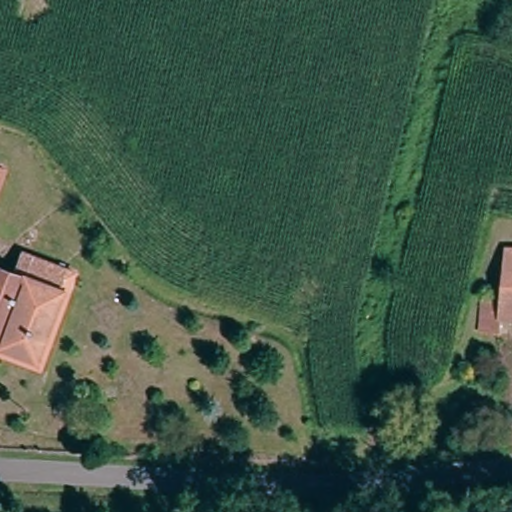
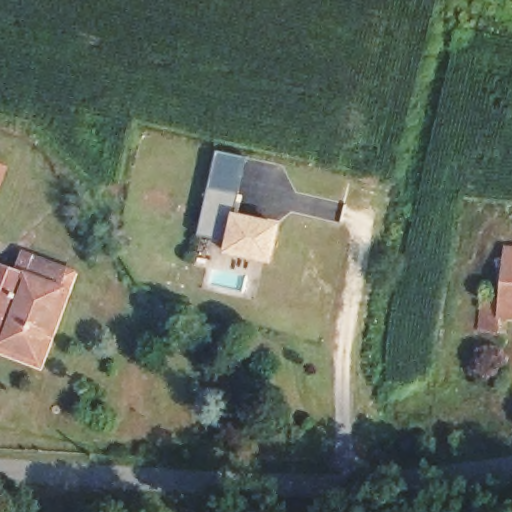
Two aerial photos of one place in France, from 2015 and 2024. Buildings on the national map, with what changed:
new [(280,223),(272,265),(222,254),(225,241),(198,235),(209,187),(236,193),(231,212),(280,223)]
unchanged [(481,298),(500,298),(505,244),(512,245),(512,320),(497,318),(496,331),(478,332),(481,298)]
unchanged [(25,348),(0,340),(0,266),(47,283),(25,348)]

